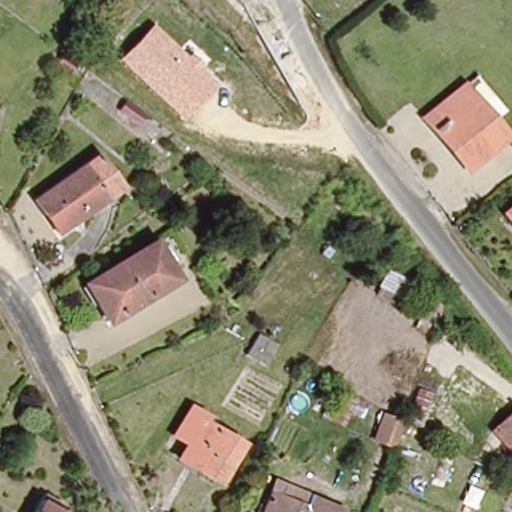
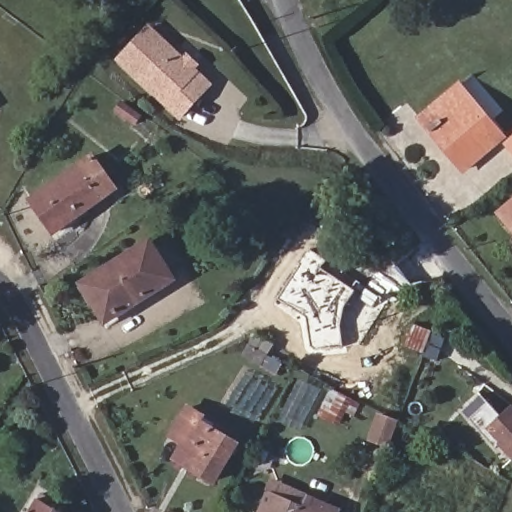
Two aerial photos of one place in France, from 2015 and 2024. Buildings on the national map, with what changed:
unchanged [(213,87),(180,121),(115,60),(149,26),(213,87)]
unchanged [(418,107),(426,101),(461,76),(500,131),(460,160),(447,142),(444,144),(418,107)]
unchanged [(512,132),(512,150),(503,139),(512,132)]
unchanged [(61,223),(40,190),(90,157),(112,190),(61,223)]
unchanged [(512,204),(512,232),(498,213),(512,204)]
unchanged [(181,286),(105,328),(80,278),(153,238),(181,286)]
new [(321,269),(356,291),(342,313),(341,345),(310,347),(306,318),(278,300),(310,250),(327,260),(321,269)]
unchanged [(265,365),(245,354),(256,334),(276,345),(265,365)]
unchanged [(382,409),(398,418),(401,420),(390,449),(370,441),(382,409)]
unchanged [(173,461),(180,450),(166,440),(185,410),(206,423),(203,428),(235,447),(212,484),(173,461)]
unchanged [(512,412),(512,455),(491,431),(512,412)]
unchanged [(273,477),(307,492),(342,507),(340,512),(258,512),(268,487),(273,477)]
unchanged [(64,503),(60,509),(65,512),(35,512),(47,492),(64,503)]

